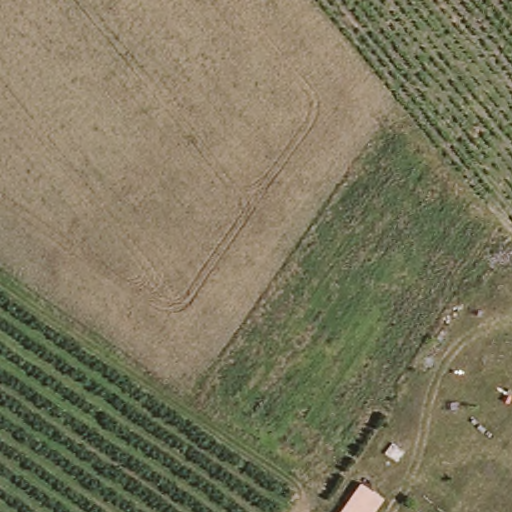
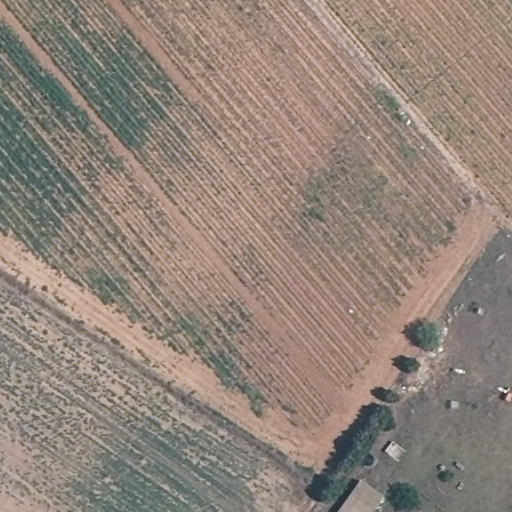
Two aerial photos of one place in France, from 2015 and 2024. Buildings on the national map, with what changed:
unchanged [(363,483),(385,499),(376,512),(342,512),(363,483)]

